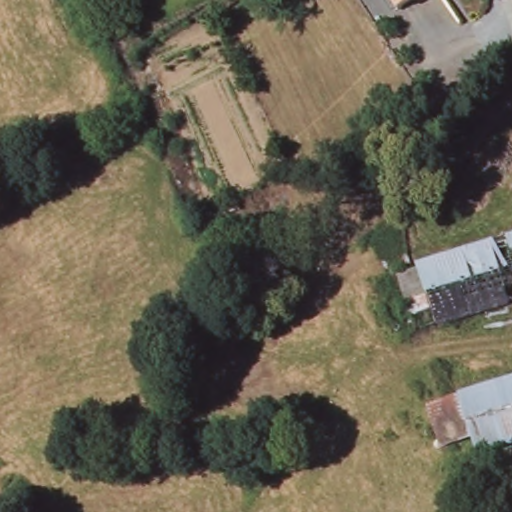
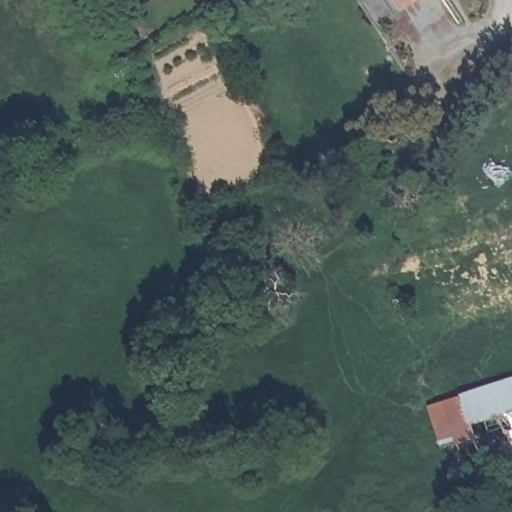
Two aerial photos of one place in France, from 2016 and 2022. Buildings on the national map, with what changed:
unchanged [(402,14),(392,0),(421,0),(402,14)]
demolished [(512,244),(512,304),(439,326),(422,270),(512,244)]
unchanged [(512,444),(474,455),(469,440),(457,398),(512,382),(512,444)]
unchanged [(441,448),(429,407),(457,398),(469,440),(441,448)]

